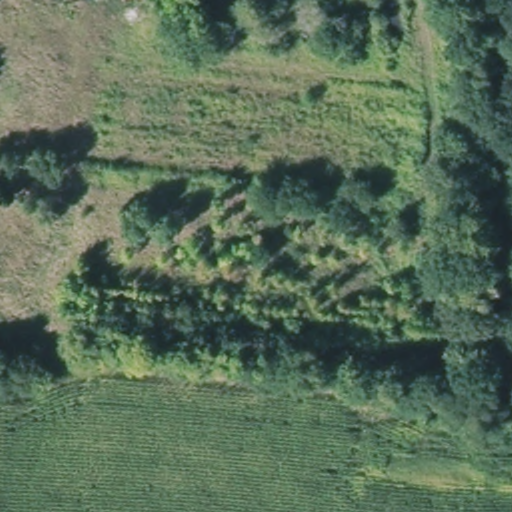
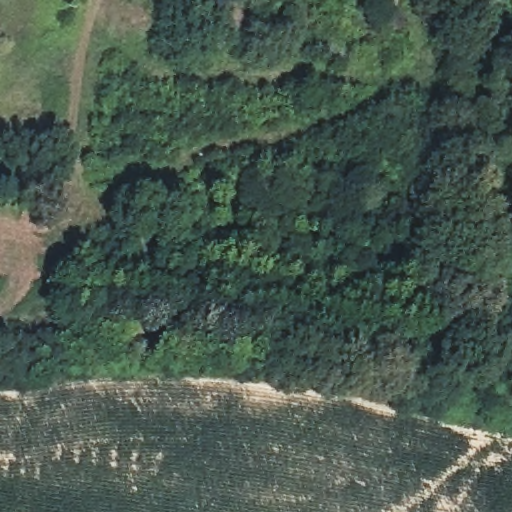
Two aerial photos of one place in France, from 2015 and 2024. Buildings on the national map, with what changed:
[]

